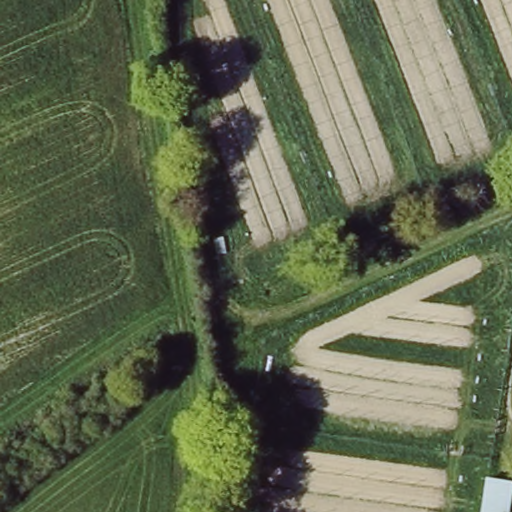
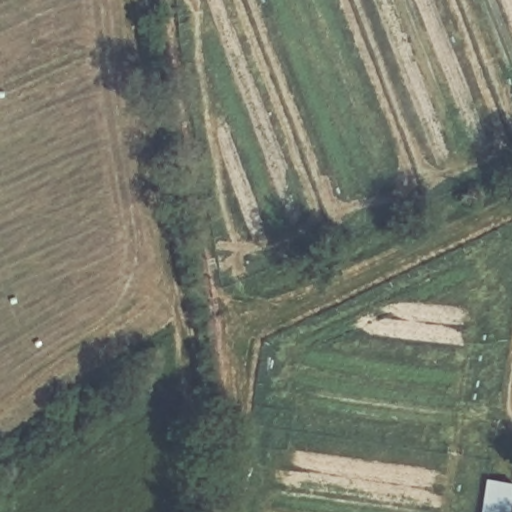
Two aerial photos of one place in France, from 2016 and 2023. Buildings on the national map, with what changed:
unchanged [(480,512),(487,478),(512,483),(512,512),(480,512)]

